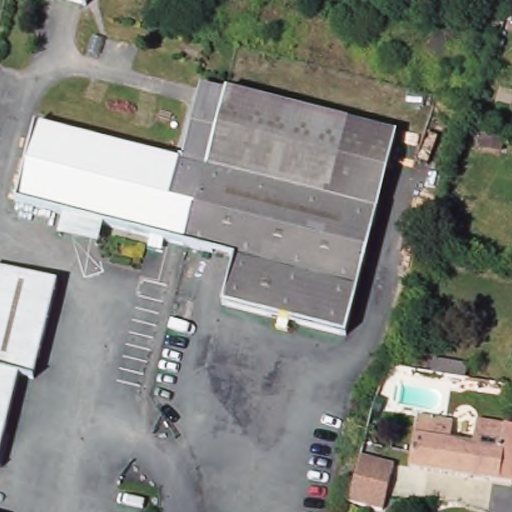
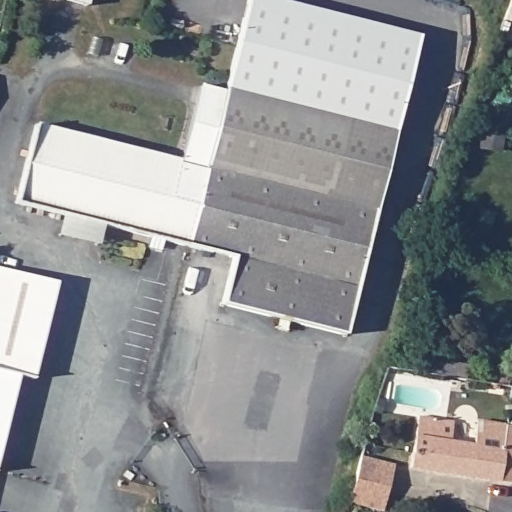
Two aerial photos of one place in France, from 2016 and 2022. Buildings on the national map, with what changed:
unchanged [(62,0),(89,0),(88,6),(62,0)]
new [(400,130),(226,87),(248,0),(281,0),(422,36),(400,130)]
unchanged [(512,0),(512,15),(507,14),(512,0)]
unchanged [(147,247),(149,237),(104,225),(99,247),(58,237),(64,215),(16,203),(35,125),(182,161),(200,86),(225,92),(207,167),(187,246),(163,240),(160,250),(147,247)]
unchanged [(226,87),(400,130),(378,210),(231,174),(207,167),(225,92),(226,87)]
unchanged [(484,133),(508,137),(506,150),(481,146),(484,133)]
unchanged [(347,335),(222,305),(234,258),(187,246),(207,167),(231,174),(378,210),(347,335)]
unchanged [(16,375),(0,371),(0,268),(34,276),(54,280),(30,378),(16,375)]
unchanged [(437,359),(472,365),(469,380),(434,374),(437,359)]
unchanged [(0,371),(16,375),(0,442),(0,371)]
unchanged [(451,442),(473,445),(477,421),(512,427),(512,483),(409,469),(418,416),(454,422),(451,442)]
unchanged [(361,455),(396,464),(384,512),(382,512),(349,503),(361,455)]

